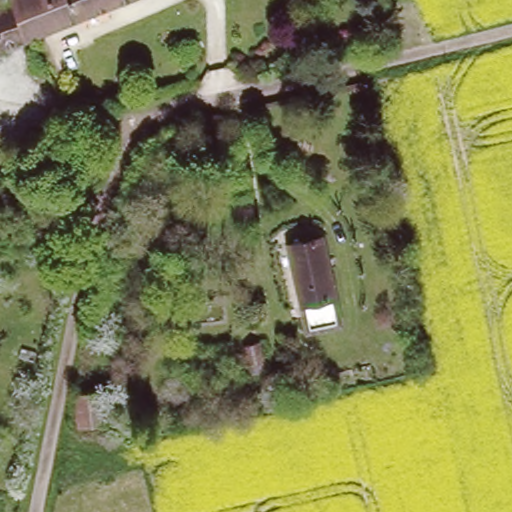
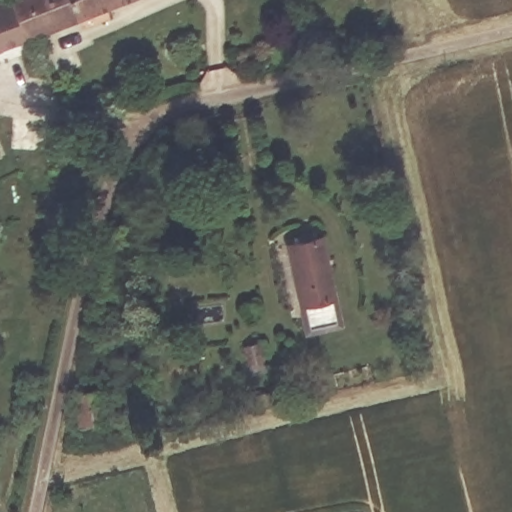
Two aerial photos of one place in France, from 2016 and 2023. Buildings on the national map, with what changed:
unchanged [(13,0),(21,0),(38,40),(13,50),(0,16),(0,5),(13,0)]
unchanged [(136,0),(38,40),(21,0),(136,0)]
unchanged [(13,50),(0,55),(0,16),(13,50)]
unchanged [(11,143),(0,148),(0,121),(11,143)]
unchanged [(338,295),(307,303),(292,246),(323,238),(338,295)]
unchanged [(265,375),(248,379),(243,359),(260,355),(265,375)]
unchanged [(72,426),(76,392),(113,386),(120,418),(72,426)]

